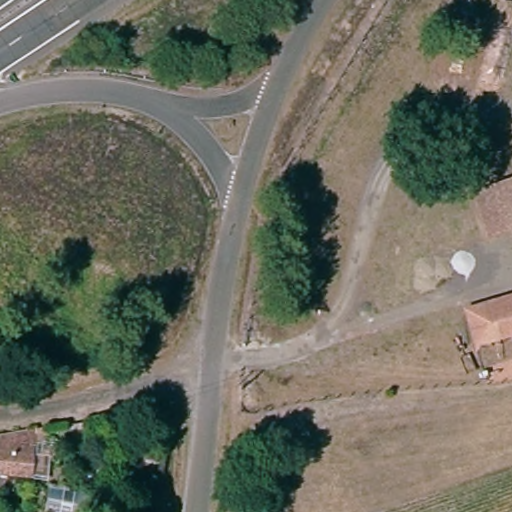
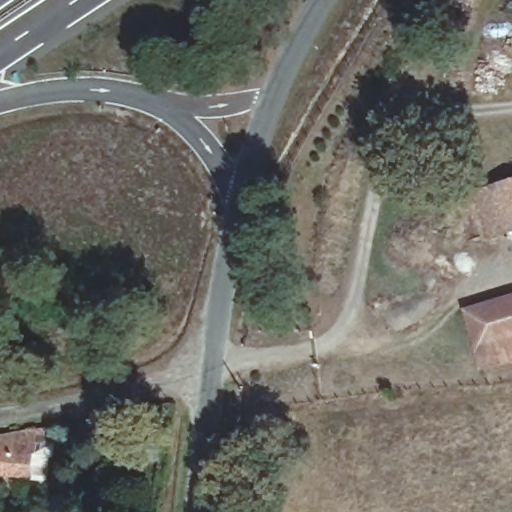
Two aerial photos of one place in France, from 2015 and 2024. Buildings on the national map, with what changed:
unchanged [(471,188),(512,175),(512,223),(485,232),(471,188)]
unchanged [(512,356),(476,366),(461,312),(508,298),(512,314),(512,356)]
unchanged [(42,482),(28,481),(0,479),(0,441),(2,441),(32,437),(31,448),(30,461),(43,462),(42,482)]

